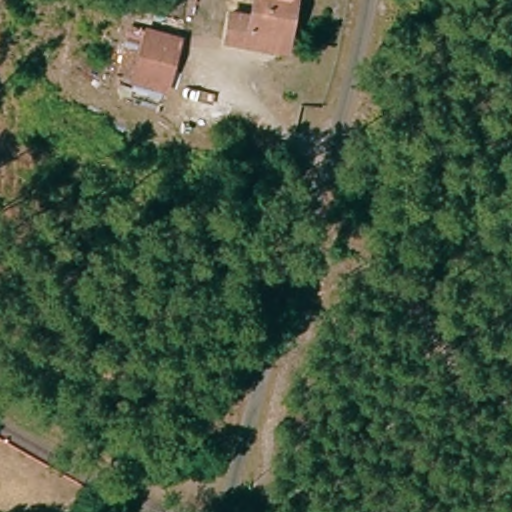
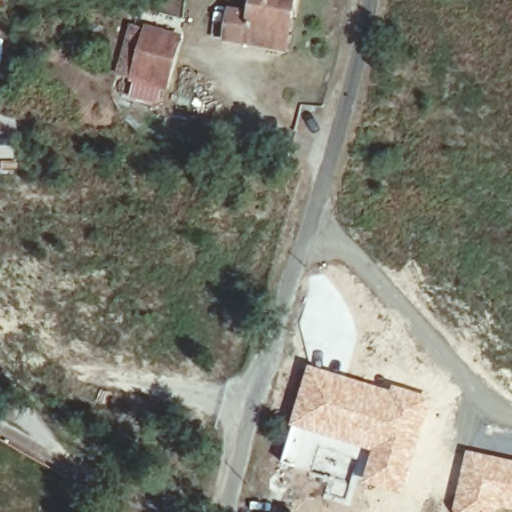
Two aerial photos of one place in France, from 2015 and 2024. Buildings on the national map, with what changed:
unchanged [(227,40),(231,11),(257,14),(259,0),(300,0),(291,48),(227,40)]
unchanged [(165,86),(122,76),(131,21),(177,33),(165,86)]
new [(4,40),(0,67),(0,40),(4,40)]
new [(308,366),(390,389),(391,385),(432,397),(403,495),(362,482),(370,453),(359,450),(355,448),(290,427),(308,366)]
new [(290,427),(355,448),(351,455),(333,450),(329,458),(328,458),(327,460),(321,462),(318,465),(316,465),(313,472),(279,461),(290,427)]
new [(512,461),(512,512),(507,512),(501,511),(501,512),(453,512),(466,450),(512,461)]

